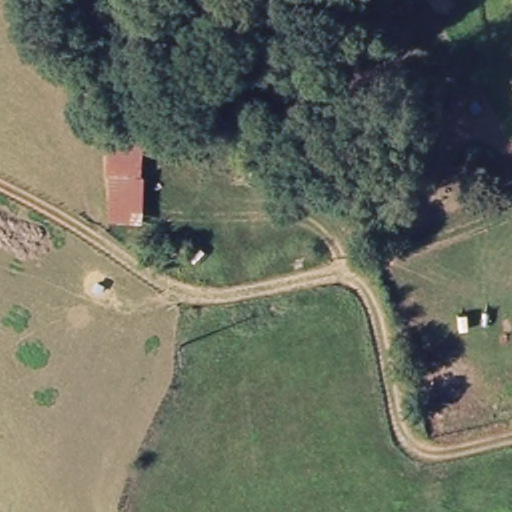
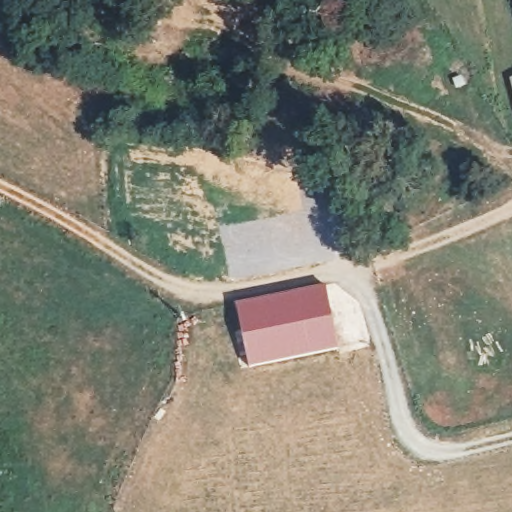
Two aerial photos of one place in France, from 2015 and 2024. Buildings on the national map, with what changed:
demolished [(108,221),(110,179),(104,178),(107,144),(142,146),(140,180),(152,183),(143,228),(108,221)]
new [(340,348),(249,369),(236,303),(327,283),(340,348)]

